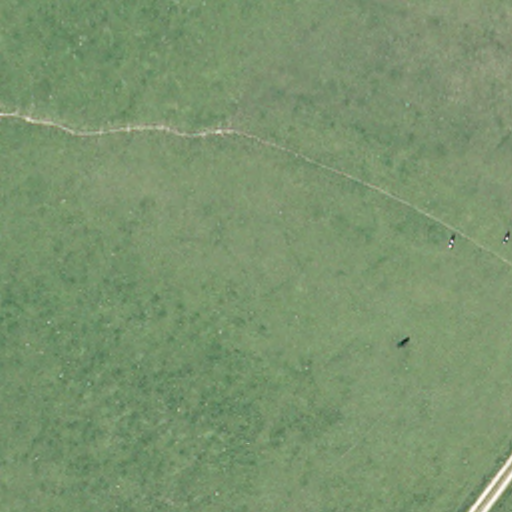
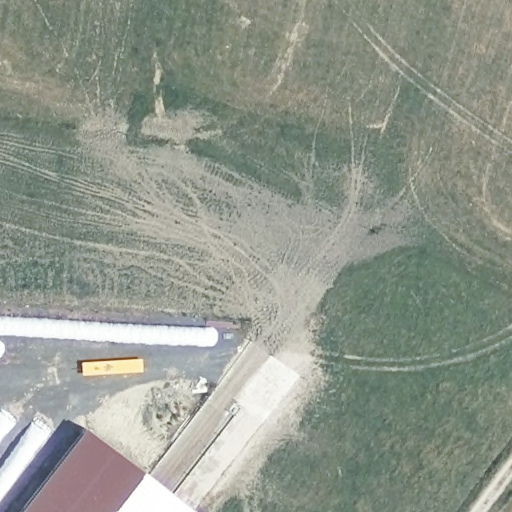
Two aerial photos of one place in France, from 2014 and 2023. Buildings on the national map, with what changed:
new [(191,512),(17,512),(80,428),(191,512)]

